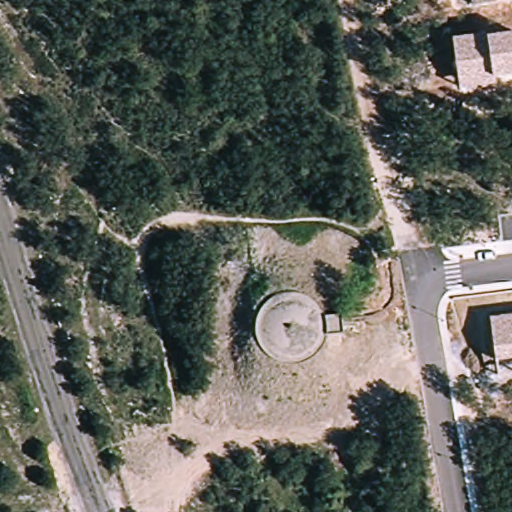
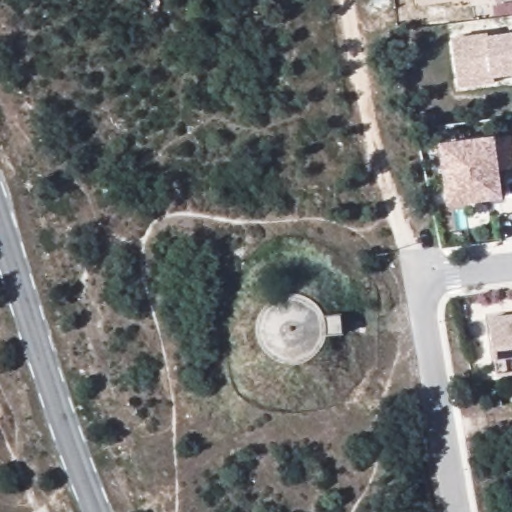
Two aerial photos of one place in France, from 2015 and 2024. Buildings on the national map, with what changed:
unchanged [(473,4),(473,0),(496,0),(473,4)]
unchanged [(493,76),(493,84),(461,91),(452,37),(488,35),(512,32),(512,73),(493,76)]
new [(439,144),(497,136),(498,142),(512,137),(512,172),(502,175),(506,198),(462,204),(448,206),(443,180),(457,177),(444,179),(439,144)]
unchanged [(490,317),(512,314),(512,373),(498,375),(490,317)]

